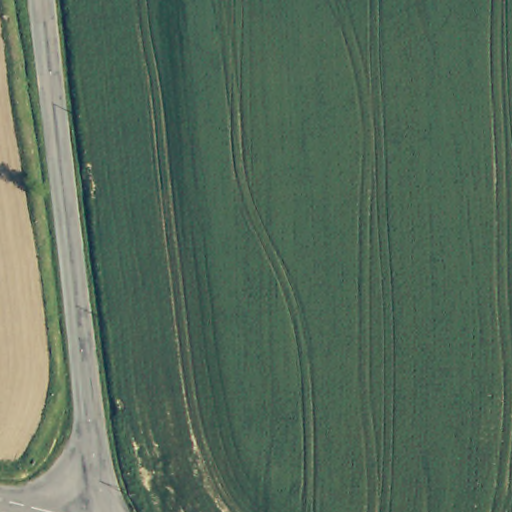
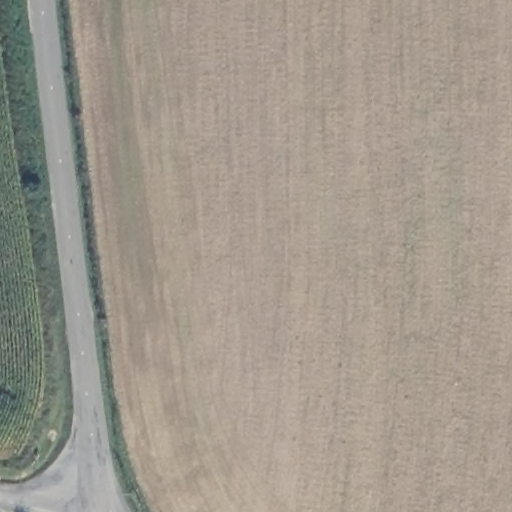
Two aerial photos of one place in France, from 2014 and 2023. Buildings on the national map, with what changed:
[]

